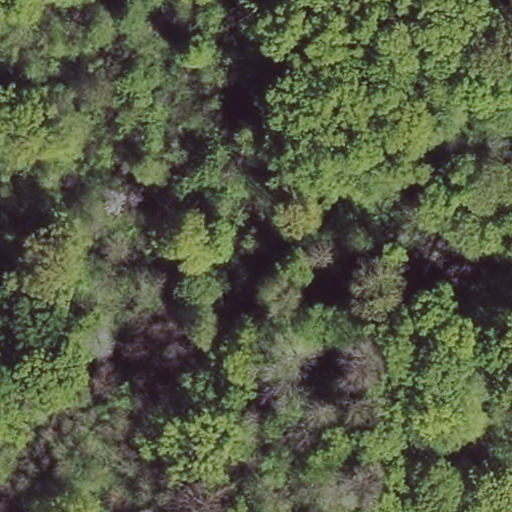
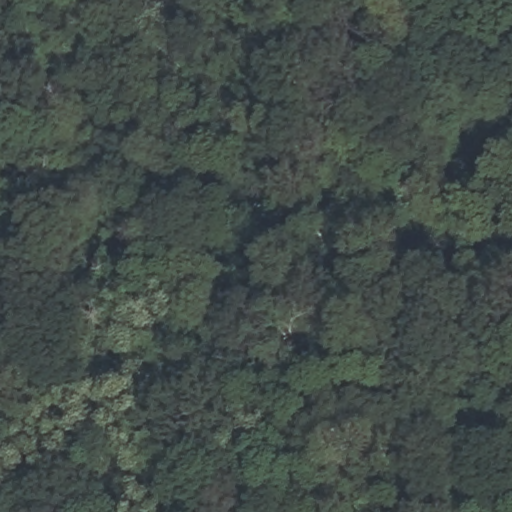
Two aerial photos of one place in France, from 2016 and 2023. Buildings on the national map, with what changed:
[]

